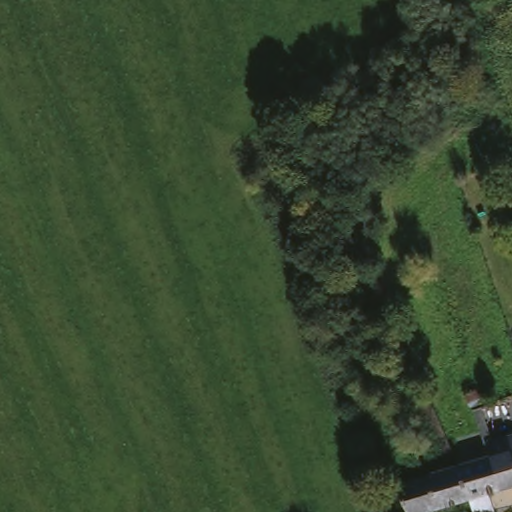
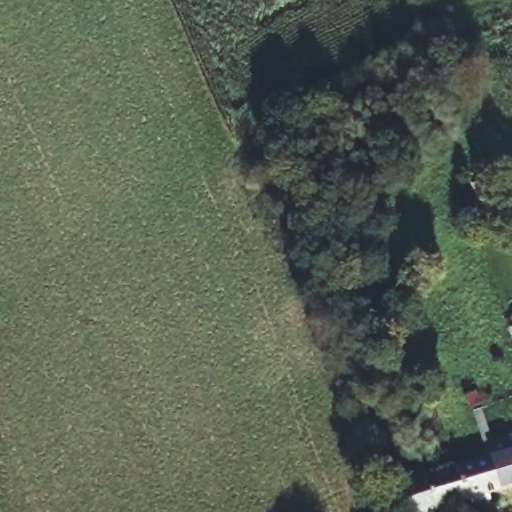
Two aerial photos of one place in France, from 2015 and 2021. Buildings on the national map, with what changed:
unchanged [(498,436),(512,431),(512,449),(501,452),(498,436)]
unchanged [(512,489),(498,493),(500,503),(480,509),(476,497),(464,462),(492,455),(501,452),(512,449),(512,489)]
unchanged [(476,497),(446,505),(436,470),(458,464),(464,462),(476,497)]
unchanged [(415,512),(412,482),(412,476),(436,470),(446,505),(421,512),(415,512)]

